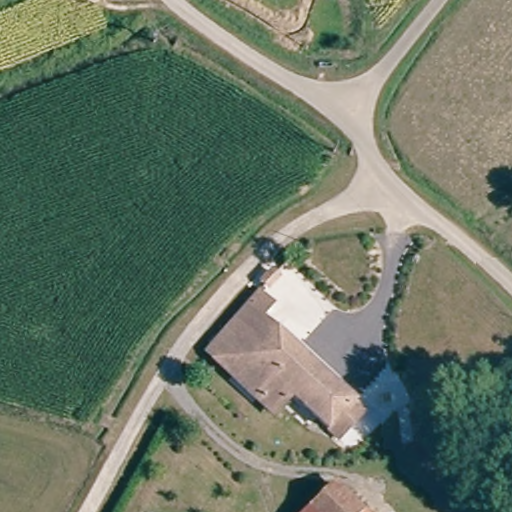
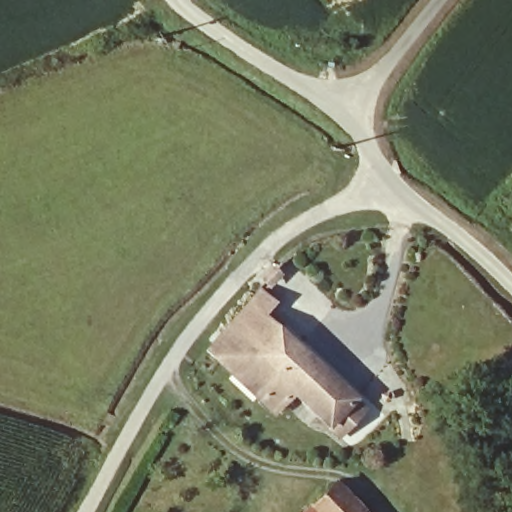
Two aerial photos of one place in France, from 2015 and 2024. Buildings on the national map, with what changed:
unchanged [(253,354),(224,329),(246,296),(278,323),(253,354)]
unchanged [(278,323),(373,403),(346,434),(294,390),(274,412),(233,378),(253,354),(278,323)]
unchanged [(379,512),(307,512),(312,506),(336,475),(373,505),(379,512)]

